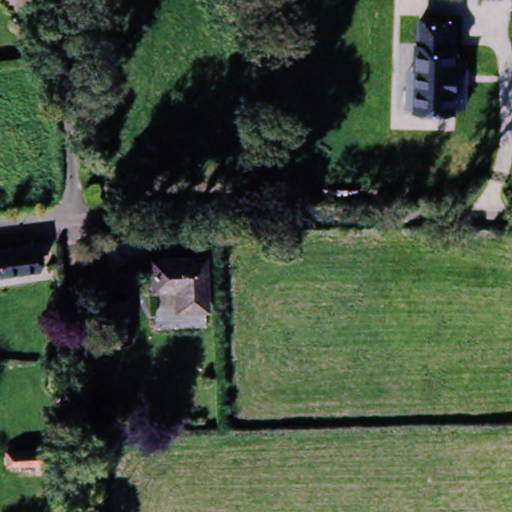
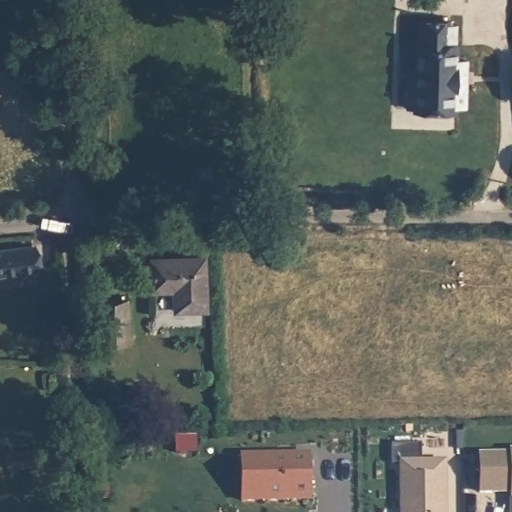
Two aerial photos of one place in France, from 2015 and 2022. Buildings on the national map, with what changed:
unchanged [(450,19),(450,22),(457,22),(457,56),(467,56),(468,108),(455,109),(454,114),(411,111),(411,106),(407,106),(407,65),(416,65),(417,43),(419,43),(420,19),(450,19)]
unchanged [(23,252),(28,276),(0,280),(0,255),(23,252)]
unchanged [(207,313),(175,313),(173,287),(154,287),(154,260),(208,260),(207,313)]
unchanged [(133,343),(106,343),(106,301),(132,300),(133,343)]
new [(421,458),(450,459),(451,512),(395,512),(395,464),(391,464),(390,444),(421,444),(421,458)]
unchanged [(47,460),(6,462),(6,449),(47,448),(47,460)]
new [(512,512),(504,512),(504,503),(509,503),(508,498),(478,498),(477,448),(512,448),(512,512)]
new [(310,455),(311,499),(241,500),(240,455),(310,455)]

